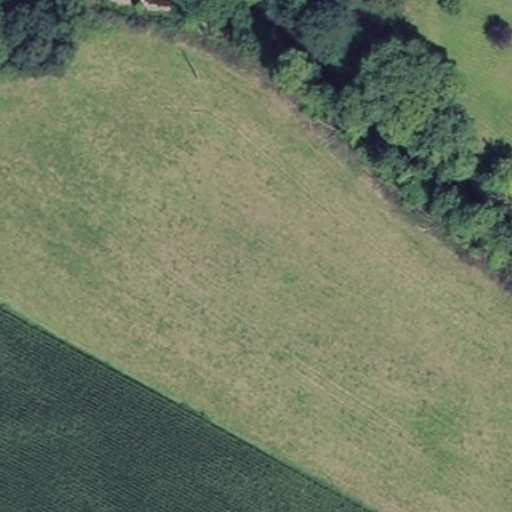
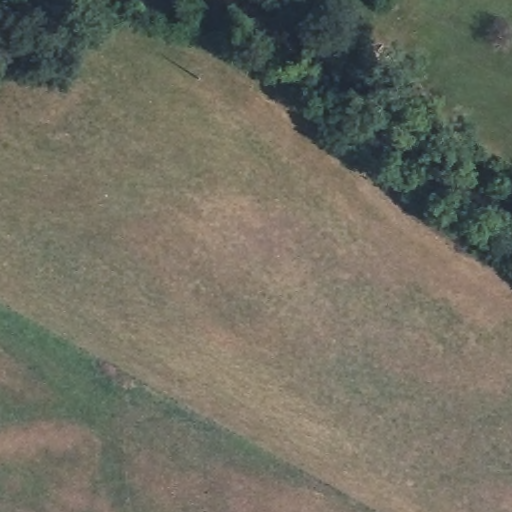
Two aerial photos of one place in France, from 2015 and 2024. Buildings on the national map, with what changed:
[]

